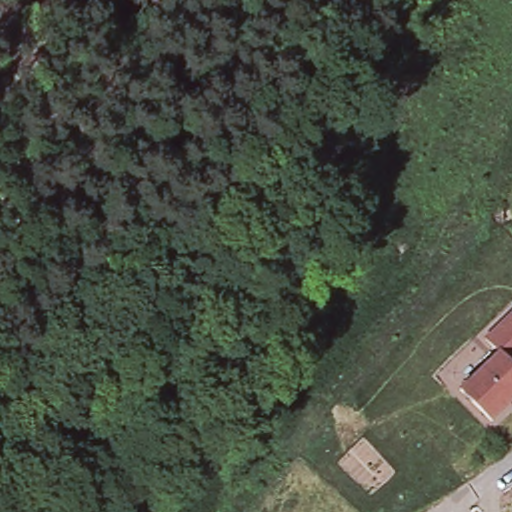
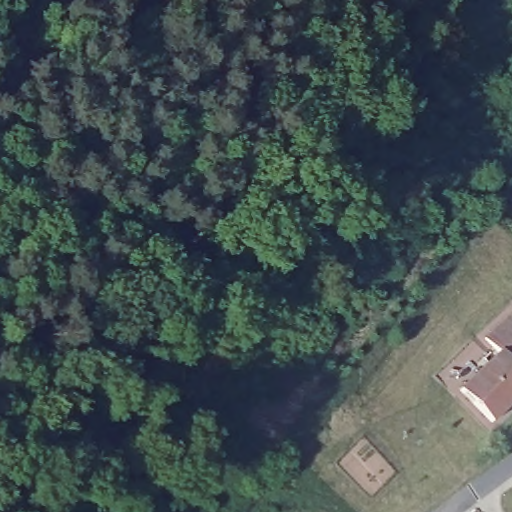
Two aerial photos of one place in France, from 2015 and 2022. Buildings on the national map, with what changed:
unchanged [(498,354),(483,340),(509,312),(512,314),(512,366),(499,353),(498,354)]
unchanged [(460,394),(498,354),(499,353),(512,366),(512,401),(491,424),(460,394)]

